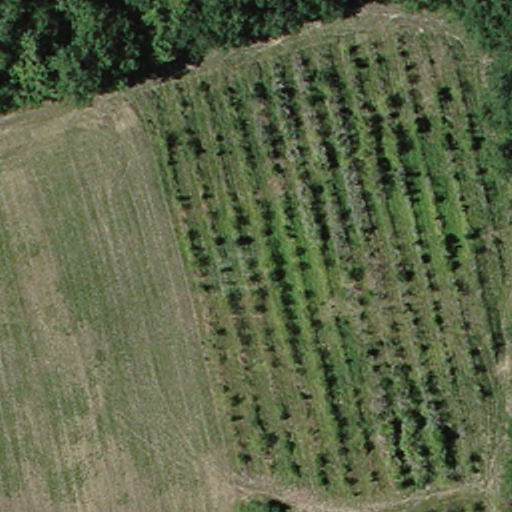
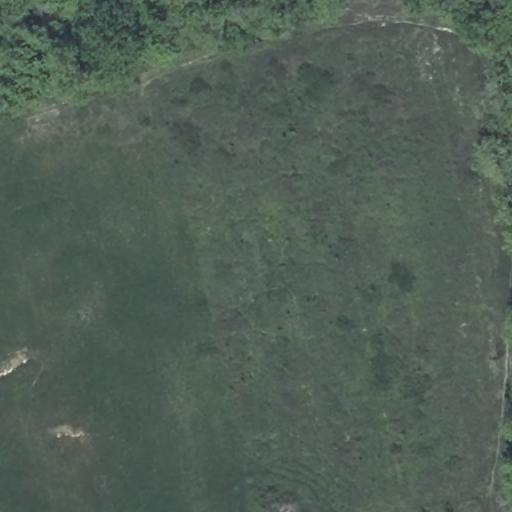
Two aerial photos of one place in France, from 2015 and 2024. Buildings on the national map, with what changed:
[]

